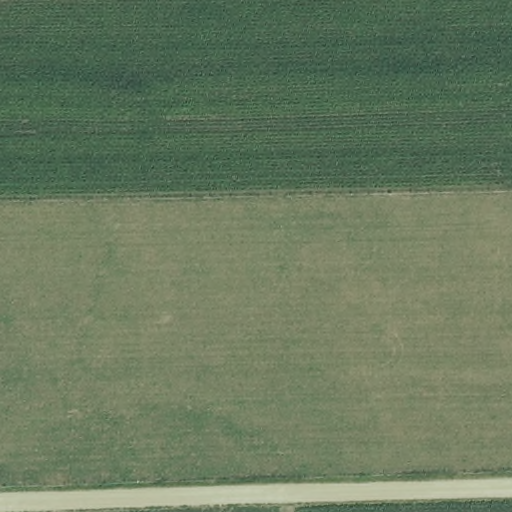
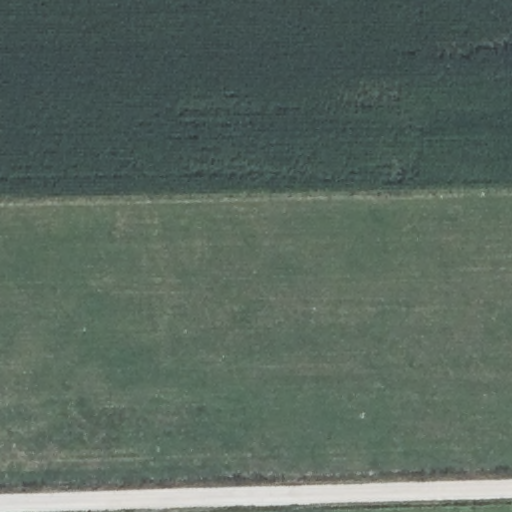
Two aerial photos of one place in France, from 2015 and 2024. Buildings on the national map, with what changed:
[]

